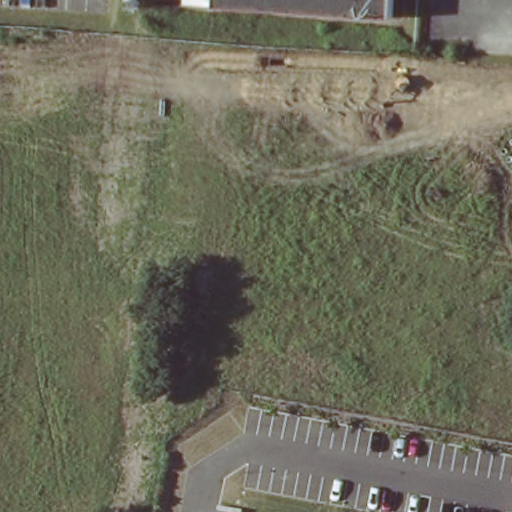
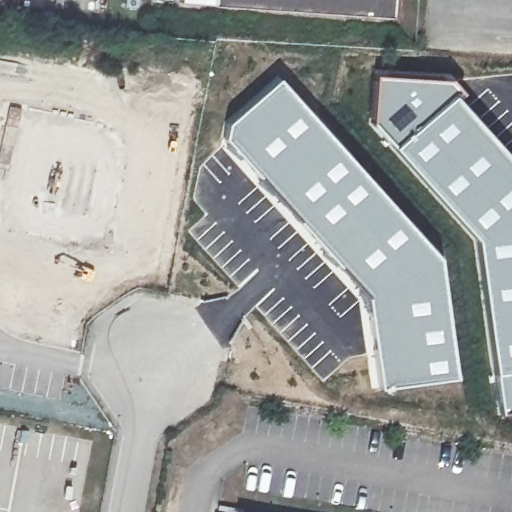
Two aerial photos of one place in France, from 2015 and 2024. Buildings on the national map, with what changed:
unchanged [(393,0),(392,18),(214,6),(214,0),(393,0)]
new [(374,74),(452,78),(465,92),(459,97),(512,158),(512,411),(500,413),(475,241),(392,149),(370,122),(371,121),(374,74)]
new [(226,122),(278,76),(440,256),(458,378),(378,390),(368,322),(363,300),(359,295),(331,257),(267,186),(224,140),(226,122)]

